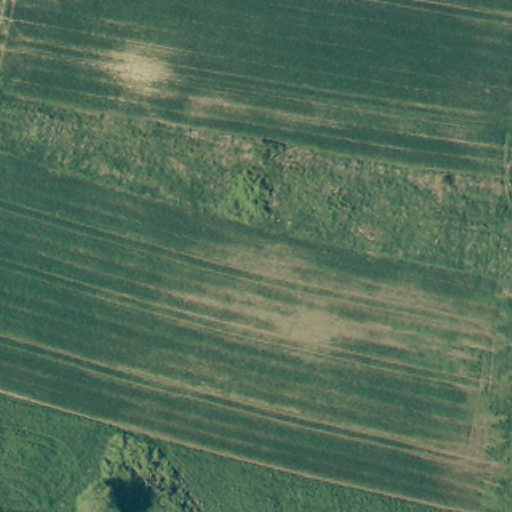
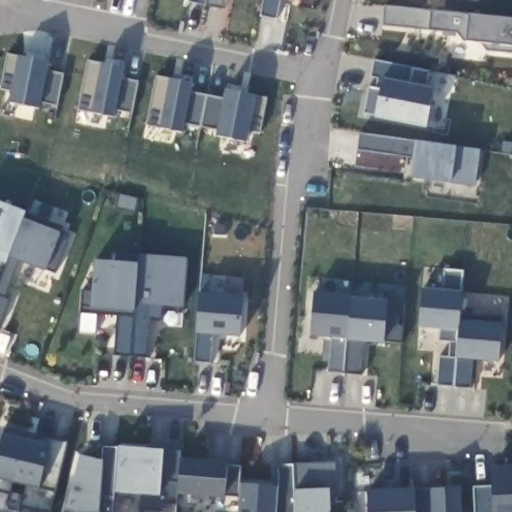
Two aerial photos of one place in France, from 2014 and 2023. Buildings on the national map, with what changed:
new [(222,10),(186,2),(187,0),(225,0),(222,10)]
new [(277,21),(258,17),(262,0),(282,0),(277,21)]
new [(485,44),(465,41),(455,32),(383,26),(385,7),(470,15),(512,19),(512,54),(486,51),(485,44)]
new [(46,74),(64,77),(57,105),(42,102),(40,111),(10,105),(13,92),(0,90),(0,85),(7,54),(49,62),(46,74)]
new [(122,80),(139,83),(132,114),(116,110),(114,119),(77,111),(87,61),(124,69),(122,80)]
new [(426,87),(435,88),(426,127),(375,116),(362,113),(373,61),(429,72),(426,87)]
new [(262,136),(250,134),(248,143),(216,137),(218,131),(186,125),(182,134),(145,127),(155,75),(194,84),(191,92),(224,99),(226,91),(268,100),(262,136)]
new [(475,186),(450,183),(411,178),(412,161),(358,152),(360,132),(417,141),(456,147),(480,150),(475,186)]
new [(45,272),(19,262),(5,298),(12,301),(0,327),(0,274),(4,263),(0,262),(0,200),(30,212),(25,220),(60,232),(45,272)]
new [(182,308),(162,307),(161,322),(151,321),(148,359),(112,356),(116,315),(80,313),(81,291),(92,292),(95,260),(115,262),(115,252),(186,257),(182,308)]
new [(464,293),(462,313),(502,316),(501,327),(498,362),(475,362),(471,390),(438,386),(440,357),(455,358),(456,341),(441,339),(443,332),(418,328),(423,287),(443,290),(444,270),(465,272),(464,293)]
new [(401,345),(382,344),(364,343),(360,377),(327,373),(331,338),(309,336),(313,291),(352,295),(351,300),(386,303),(403,305),(401,345)]
new [(240,337),(214,335),(210,363),(195,362),(196,333),(200,292),(244,295),(240,337)]
new [(41,512),(19,506),(25,486),(11,482),(7,495),(0,493),(0,449),(4,435),(6,427),(68,442),(49,512),(41,512)]
new [(331,496),(332,512),(237,512),(239,500),(178,495),(176,506),(161,504),(161,512),(157,512),(135,510),(139,494),(115,493),(112,512),(78,512),(67,509),(80,455),(103,460),(105,449),(118,452),(119,447),(165,451),(181,453),(180,461),(226,465),(242,466),(242,483),(280,486),(278,467),(335,463),(336,496),(331,496)]
new [(495,488),(494,466),(512,465),(512,512),(475,512),(474,488),(495,488)]
new [(462,487),(464,512),(368,512),(367,491),(462,487)]

